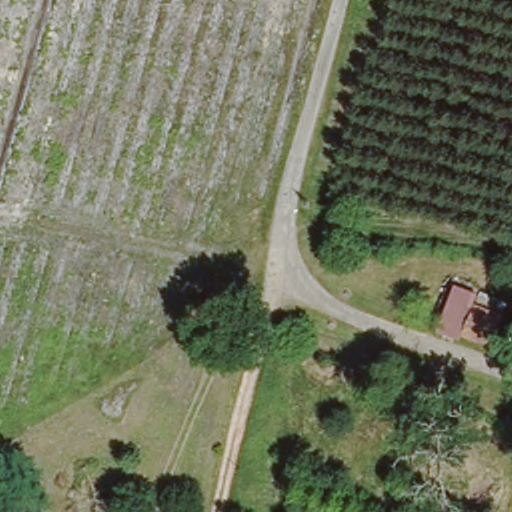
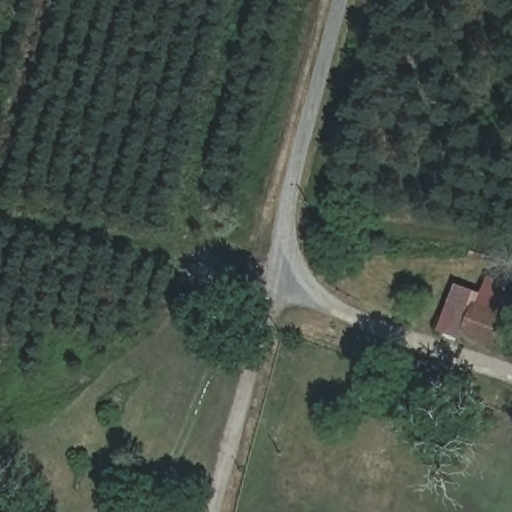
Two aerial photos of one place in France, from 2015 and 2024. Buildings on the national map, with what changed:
unchanged [(482,295),(484,290),(510,301),(505,314),(509,315),(495,347),(460,334),(457,340),(435,329),(454,283),(482,295)]

